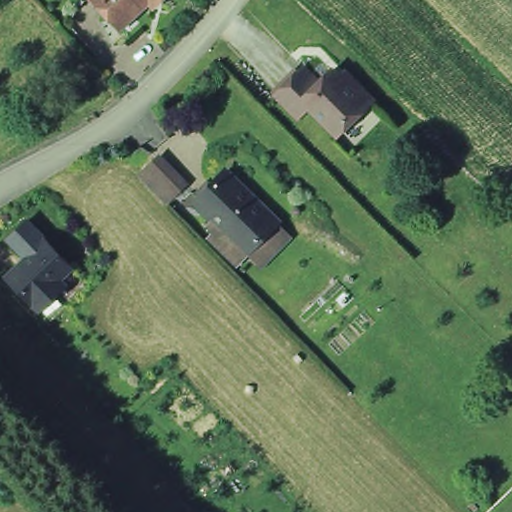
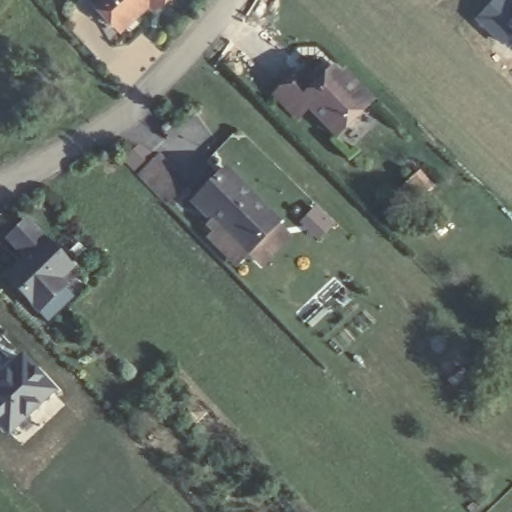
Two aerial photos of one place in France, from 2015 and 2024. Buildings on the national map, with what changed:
unchanged [(117,29),(91,0),(158,0),(151,8),(146,2),(117,29)]
new [(511,0),(512,1),(512,17),(502,28),(512,39),(512,40),(504,48),(472,19),(492,0),(511,0)]
new [(502,28),(512,17),(512,39),(502,28)]
unchanged [(336,68),(350,82),(356,77),(376,98),(341,134),(312,106),(301,117),(279,95),(302,71),(308,76),(313,71),(323,81),(336,68)]
unchanged [(182,186),(164,204),(140,179),(159,161),(182,186)]
unchanged [(210,234),(219,224),(192,198),(225,166),(276,217),(273,220),(285,232),(260,258),(247,246),(245,249),(236,258),(210,234)]
unchanged [(399,193),(412,181),(422,191),(409,204),(399,193)]
unchanged [(27,217),(76,268),(65,278),(72,285),(39,313),(5,279),(24,260),(5,238),(27,217)]
new [(20,450),(0,429),(0,375),(21,355),(65,406),(20,450)]

